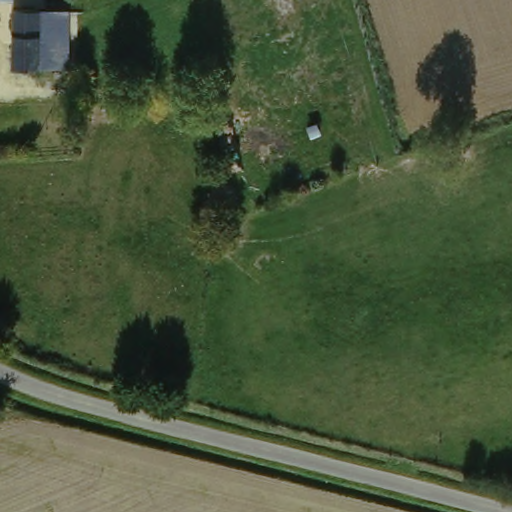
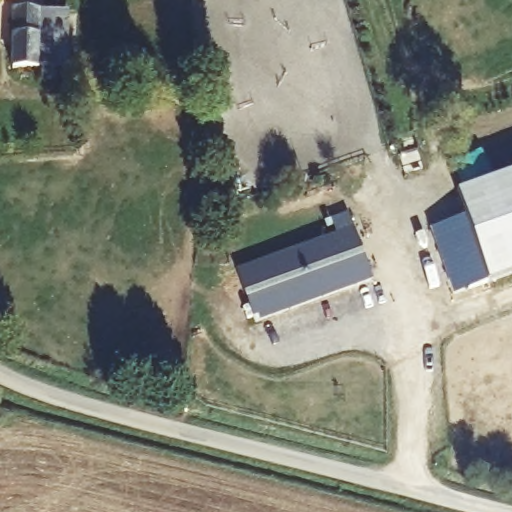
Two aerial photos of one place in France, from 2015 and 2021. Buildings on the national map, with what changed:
unchanged [(0,4),(0,0),(22,0),(21,4),(0,4)]
unchanged [(40,12),(38,68),(9,69),(10,13),(40,12)]
unchanged [(66,14),(65,71),(38,68),(40,12),(66,14)]
new [(512,175),(512,276),(487,285),(457,194),(512,175)]
new [(236,269),(354,229),(372,281),(254,323),(236,269)]

